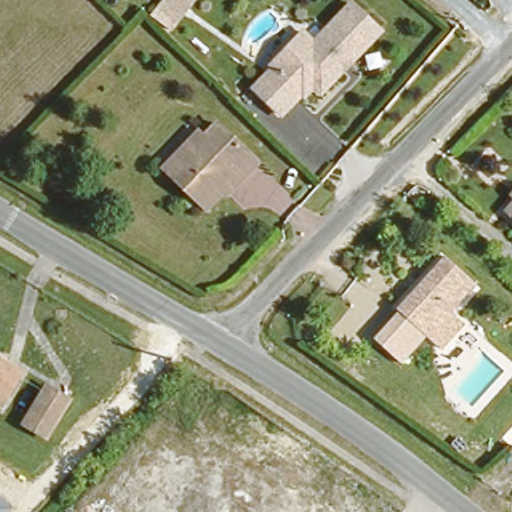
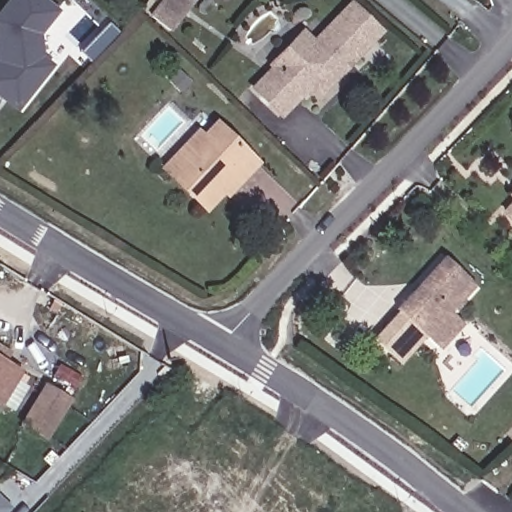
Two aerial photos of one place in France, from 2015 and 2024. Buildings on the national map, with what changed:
new [(0,95),(0,64),(1,62),(6,61),(4,50),(0,51),(0,15),(12,0),(41,0),(56,12),(38,34),(41,58),(51,66),(18,109),(0,95)]
unchanged [(169,0),(184,0),(178,7),(169,0)]
unchanged [(321,92),(314,85),(304,96),(301,93),(280,113),(254,86),(275,66),(272,63),(299,37),(304,42),(315,42),(354,5),(382,33),(321,92)]
unchanged [(262,159),(247,175),(236,164),(223,179),(230,186),(211,206),(175,172),(166,164),(199,127),(205,132),(220,116),(262,159)]
unchanged [(512,195),(512,221),(499,209),(512,195)]
unchanged [(439,338),(428,327),(427,328),(393,296),(441,245),(474,277),(450,303),(461,314),(439,338)]
unchanged [(427,332),(402,360),(372,332),(397,305),(427,332)]
unchanged [(27,370),(4,407),(0,404),(0,353),(27,370)]
unchanged [(48,378),(72,391),(51,427),(28,415),(48,378)]
unchanged [(7,512),(0,512),(0,494),(12,506),(7,512)]

